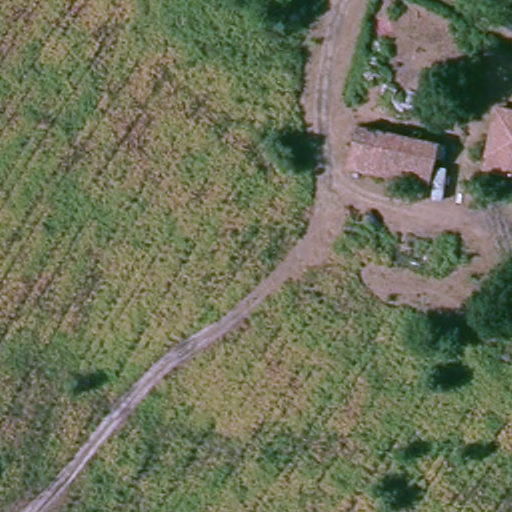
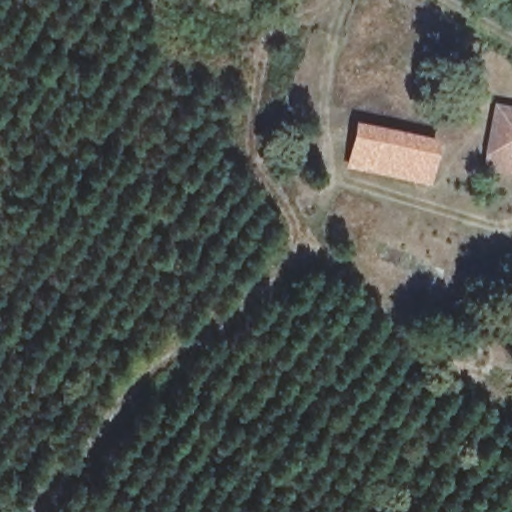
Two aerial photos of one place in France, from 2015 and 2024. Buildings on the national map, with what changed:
unchanged [(508,180),(482,174),(496,111),(512,111),(512,158),(511,158),(508,180)]
unchanged [(346,166),(352,131),(425,139),(423,180),(346,166)]

